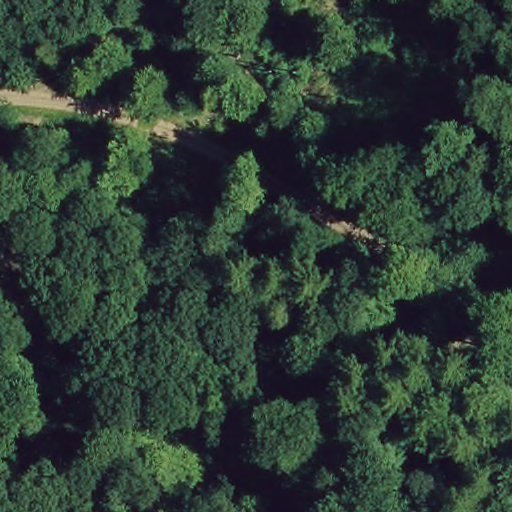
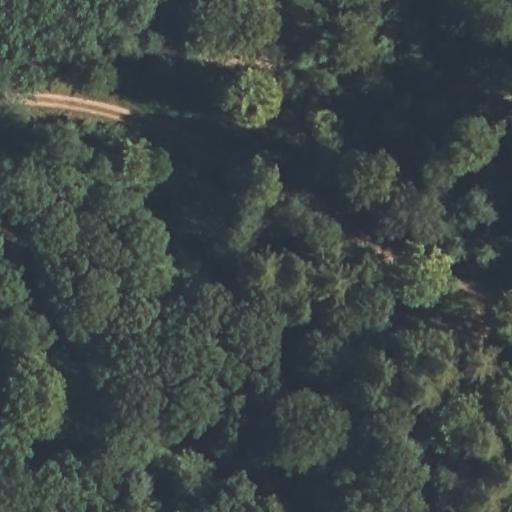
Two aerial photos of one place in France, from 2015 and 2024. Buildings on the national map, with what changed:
[]

